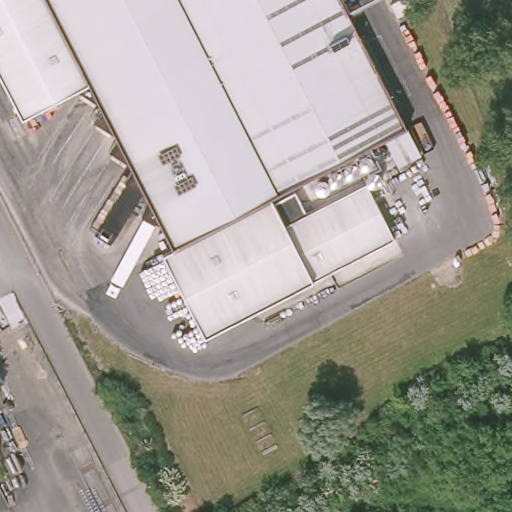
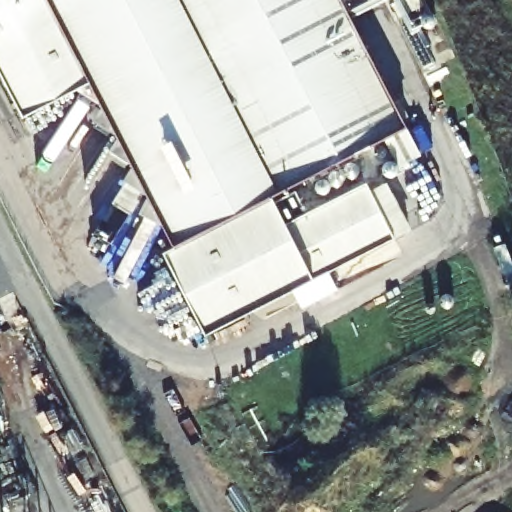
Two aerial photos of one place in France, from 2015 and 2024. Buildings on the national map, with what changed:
unchanged [(404,126),(417,151),(395,162),(382,137),(268,194),(280,219),(364,177),(392,231),(200,327),(157,244),(167,239),(105,118),(85,76),(17,110),(0,75),(0,0),(340,0),(404,126)]
unchanged [(382,7),(396,0),(412,0),(415,7),(389,21),(382,7)]

